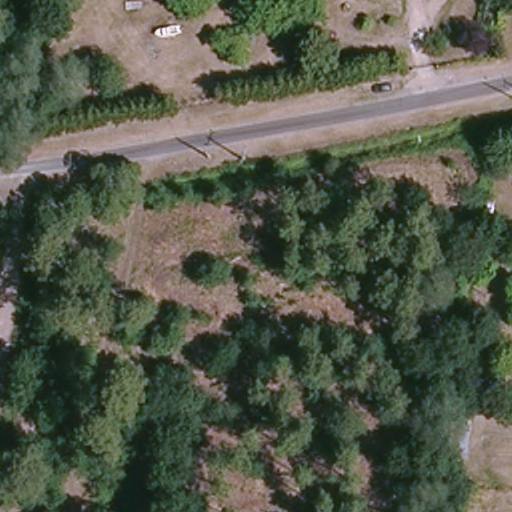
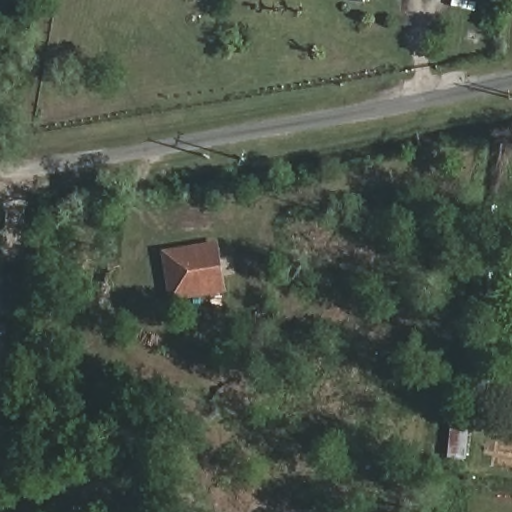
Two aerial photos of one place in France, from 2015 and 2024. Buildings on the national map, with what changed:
new [(218,241),(227,290),(169,302),(161,250),(218,241)]

